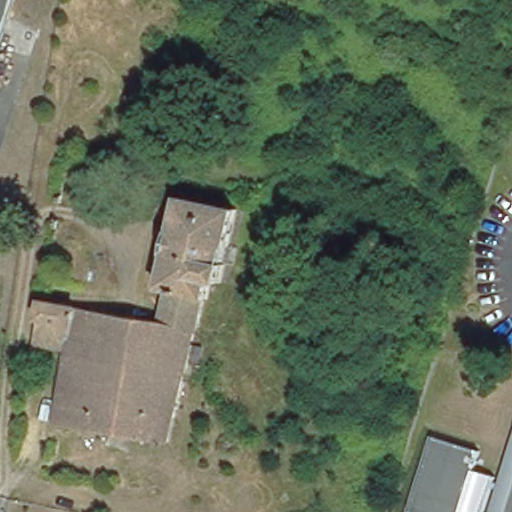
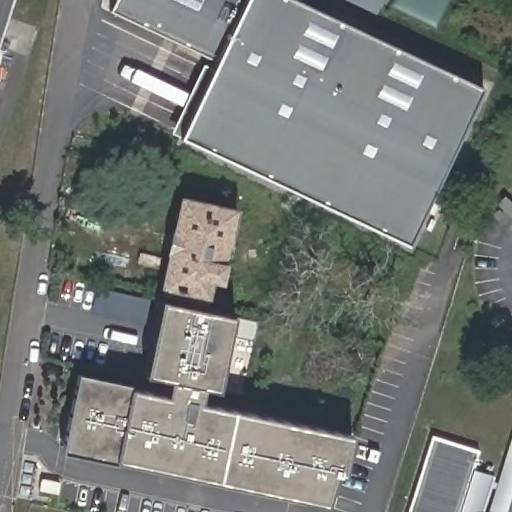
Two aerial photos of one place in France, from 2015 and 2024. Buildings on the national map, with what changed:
unchanged [(0,21),(0,23),(0,0),(7,0),(0,21)]
new [(483,87),(408,246),(183,138),(171,133),(204,65),(214,70),(218,60),(112,11),(117,0),(295,0),(483,87)]
new [(345,0),(383,0),(376,15),(345,0)]
new [(180,199),(233,210),(216,280),(208,279),(205,294),(161,285),(180,199)]
demolished [(155,331),(163,291),(156,290),(175,204),(228,215),(211,285),(203,284),(200,300),(197,299),(185,352),(182,364),(163,446),(51,424),(64,354),(33,348),(40,305),(155,331)]
new [(98,286),(152,297),(148,316),(94,305),(98,286)]
new [(115,463),(61,451),(78,375),(130,387),(167,395),(169,380),(146,375),(161,300),(233,315),(218,390),(203,388),(200,402),(351,435),(343,475),(335,473),(325,505),(115,460),(115,463)]
unchanged [(430,435),(476,451),(474,458),(470,468),(494,476),(482,512),(405,512),(427,443),(430,435)]
unchanged [(512,492),(506,512),(495,512),(512,455),(512,492)]
new [(57,506),(35,501),(40,479),(62,483),(57,506)]

